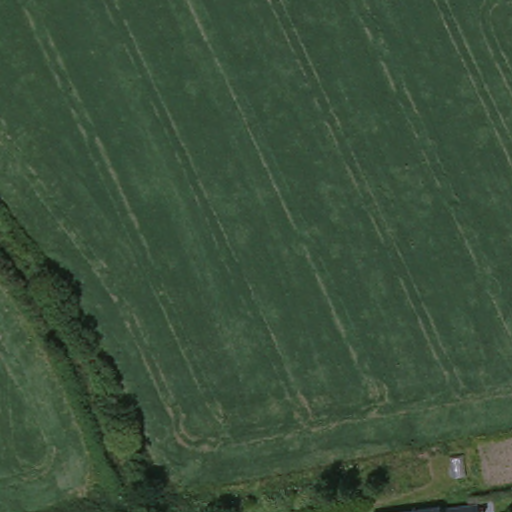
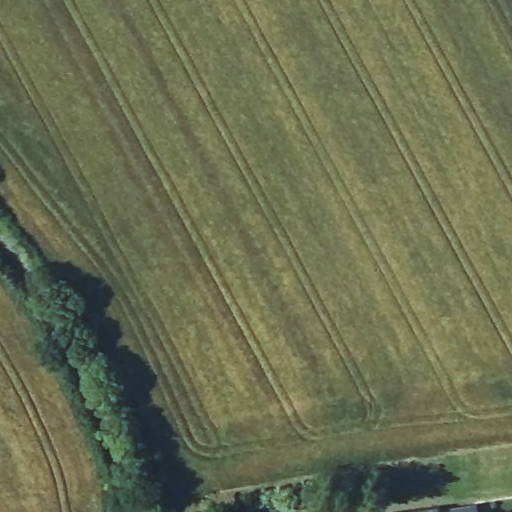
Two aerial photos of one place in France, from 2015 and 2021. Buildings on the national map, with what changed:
unchanged [(471,495),(473,506),(474,512),(393,512),(431,504),(471,495)]

